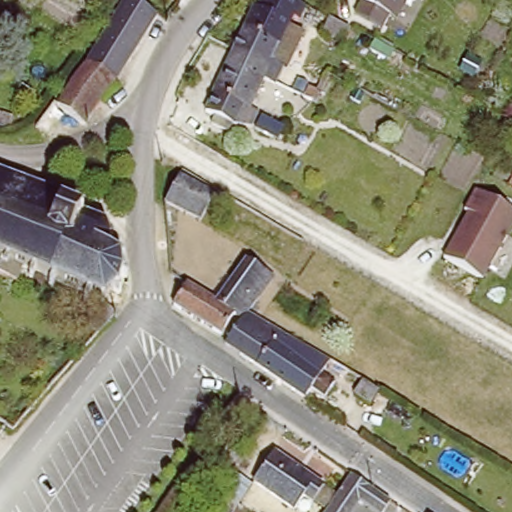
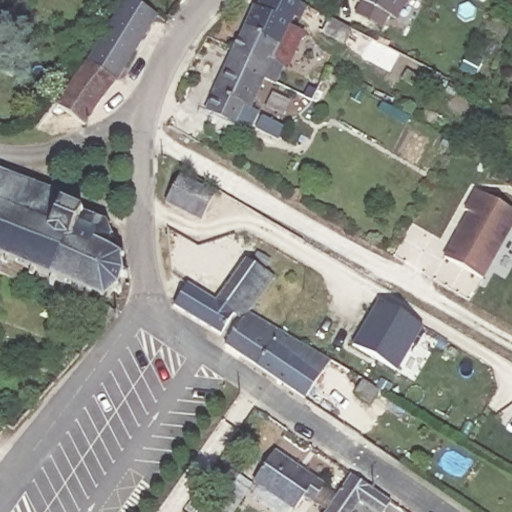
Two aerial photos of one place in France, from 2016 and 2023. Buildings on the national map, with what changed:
unchanged [(119,0),(136,0),(155,12),(117,74),(85,55),(119,0)]
unchanged [(285,54),(277,69),(265,60),(237,39),(255,0),(299,0),(297,4),(305,7),(282,52),(285,54)]
unchanged [(387,21),(347,0),(399,0),(387,21)]
unchanged [(350,26),(342,41),(322,32),(329,15),(350,26)]
unchanged [(237,39),(265,60),(247,99),(258,103),(251,118),(240,114),(239,117),(227,111),(224,119),(213,114),(217,106),(207,100),(237,39)]
unchanged [(117,74),(90,118),(55,96),(85,55),(117,74)]
unchanged [(312,87),(319,91),(310,102),(305,97),(312,87)]
unchanged [(262,109),(284,120),(280,128),(274,125),(272,130),(255,121),(262,109)]
unchanged [(10,170),(12,166),(20,169),(19,174),(65,192),(64,198),(75,204),(77,200),(84,204),(82,209),(100,217),(105,212),(109,217),(106,221),(110,225),(114,222),(117,226),(111,232),(114,239),(112,242),(115,247),(124,250),(124,258),(117,258),(116,265),(123,266),(122,277),(115,276),(113,280),(120,283),(115,291),(109,288),(107,290),(110,294),(105,299),(117,306),(97,328),(87,319),(105,298),(98,294),(97,296),(90,293),(92,289),(55,276),(54,280),(49,278),(50,273),(34,266),(32,271),(26,269),(28,264),(22,262),(17,276),(0,271),(0,167),(10,170)]
unchanged [(183,172),(219,192),(205,219),(169,199),(183,172)]
unchanged [(462,210),(474,192),(512,212),(512,227),(483,280),(442,258),(468,212),(462,210)]
unchanged [(244,256),(275,272),(249,309),(229,323),(217,338),(173,309),(188,289),(207,299),(244,256)]
new [(395,372),(352,344),(377,300),(422,328),(395,372)]
unchanged [(275,341),(284,348),(293,335),(337,361),(329,374),(325,372),(322,377),(334,386),(325,399),(312,391),(304,402),(222,347),(249,309),(282,329),(275,341)]
unchanged [(375,406),(354,395),(366,374),(387,386),(375,406)]
unchanged [(275,453),(325,485),(315,501),(305,495),(297,509),(255,483),(275,453)]
unchanged [(390,512),(383,512),(365,500),(357,512),(350,512),(336,503),(356,474),(396,502),(390,512)]
unchanged [(350,512),(330,512),(336,503),(350,512)]

